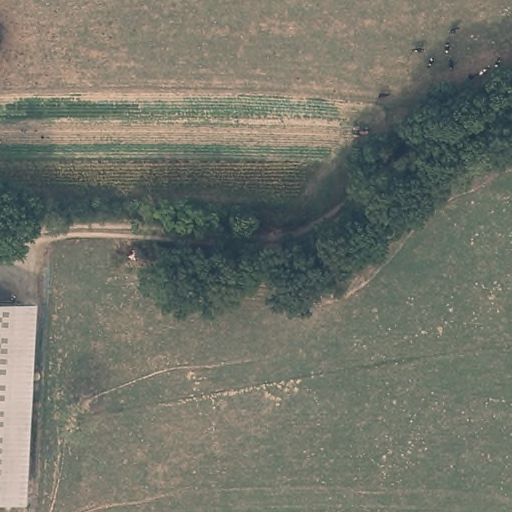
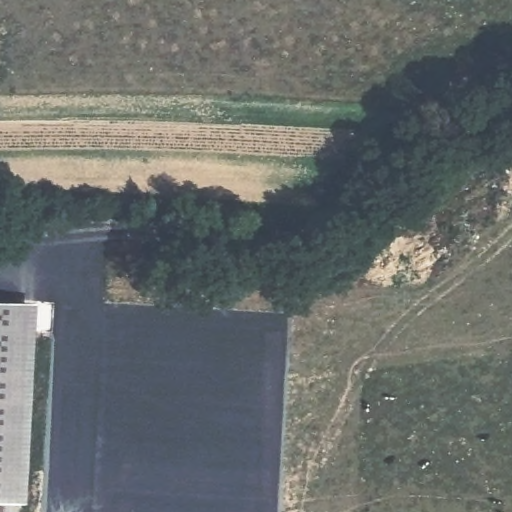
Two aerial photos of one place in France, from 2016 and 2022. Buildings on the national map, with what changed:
unchanged [(35,301),(25,502),(0,501),(0,300),(35,301)]

